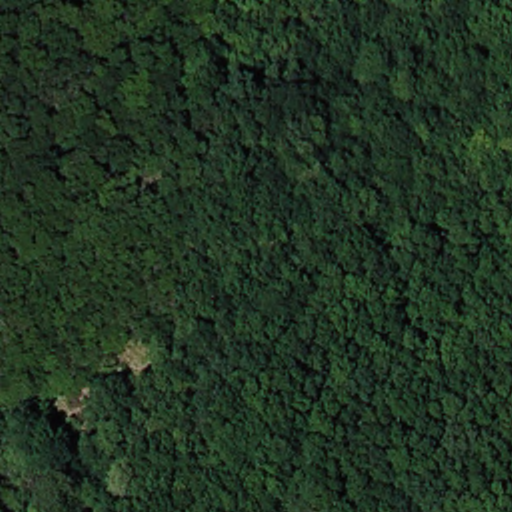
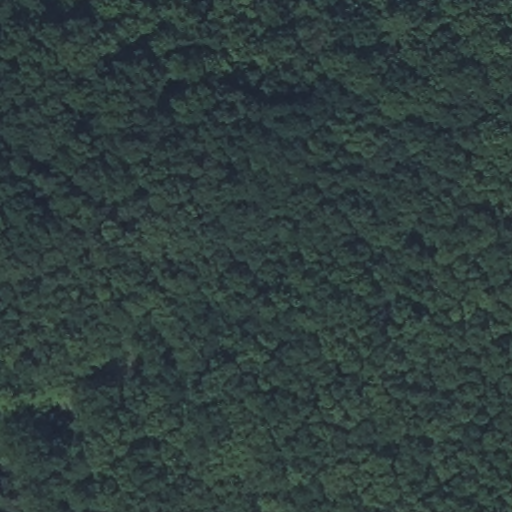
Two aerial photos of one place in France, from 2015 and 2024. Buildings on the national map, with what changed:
[]

